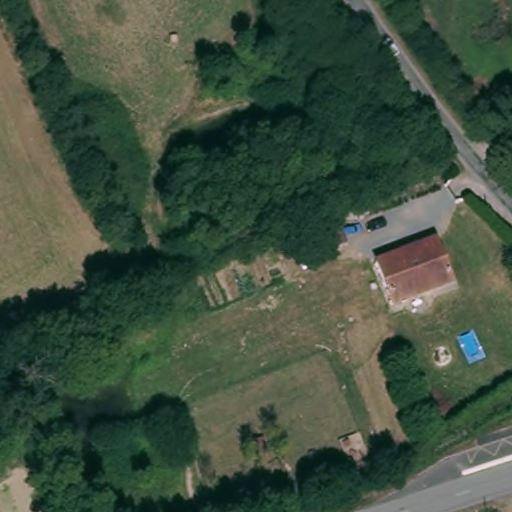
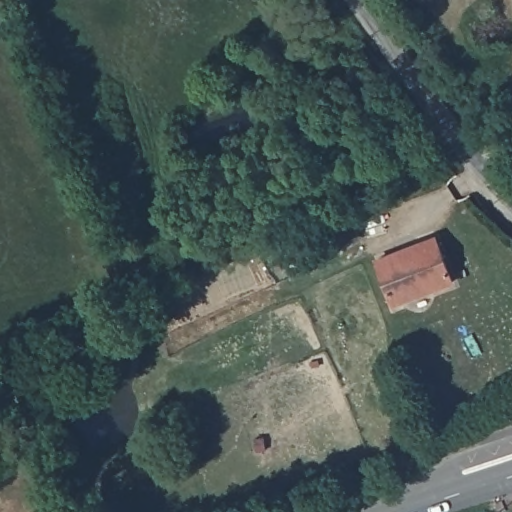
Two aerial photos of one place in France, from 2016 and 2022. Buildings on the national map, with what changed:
unchanged [(442,236),(455,284),(391,306),(375,257),(442,236)]
unchanged [(334,247),(340,266),(300,278),(294,260),(334,247)]

